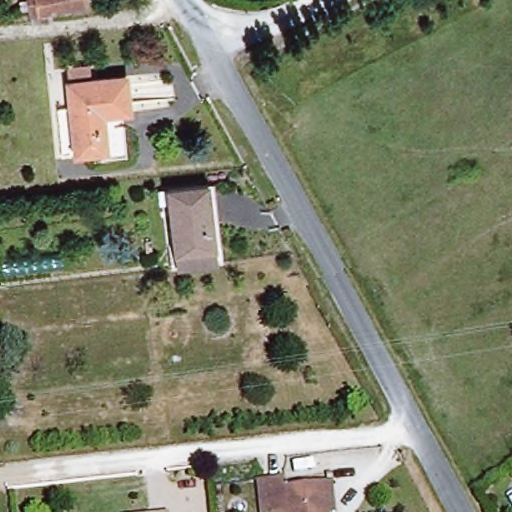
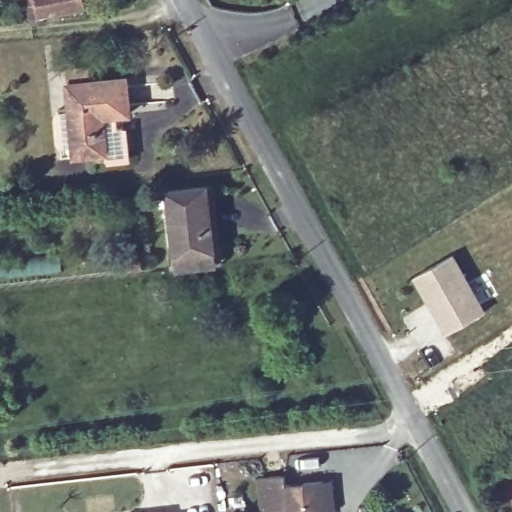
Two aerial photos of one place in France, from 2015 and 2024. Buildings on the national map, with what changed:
unchanged [(83,0),(84,4),(41,14),(42,21),(31,23),(26,0),(83,0)]
unchanged [(130,113),(103,115),(106,151),(74,154),(68,82),(126,77),(130,113)]
unchanged [(217,262),(178,267),(168,190),(207,185),(217,262)]
new [(453,254),(484,313),(447,332),(416,275),(453,254)]
unchanged [(265,476),(284,474),(285,484),(324,479),(328,512),(286,512),(286,509),(269,512),(265,476)]

